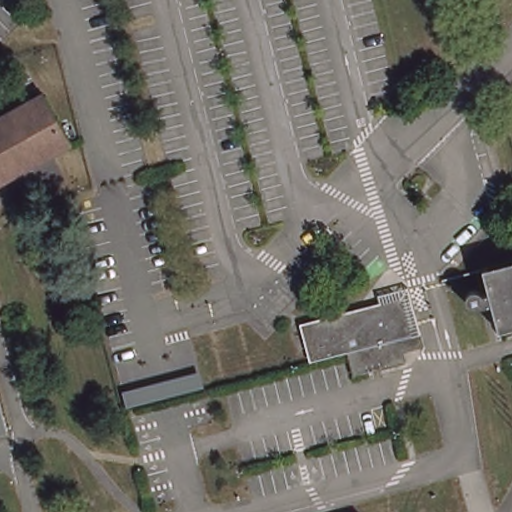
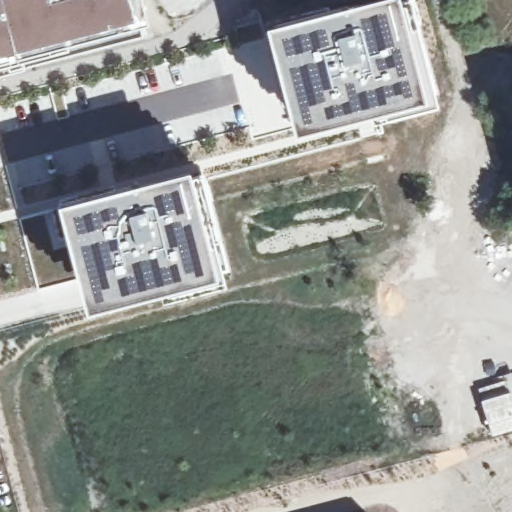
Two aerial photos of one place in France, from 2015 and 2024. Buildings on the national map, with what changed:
new [(145,0),(150,18),(20,52),(21,57),(0,63),(0,0),(145,0)]
new [(409,0),(428,55),(440,100),(391,111),(373,112),(298,130),(270,21),(350,0),(409,0)]
demolished [(5,177),(0,180),(0,121),(46,95),(71,140),(5,177)]
new [(222,272),(90,306),(72,244),(53,249),(43,213),(19,219),(16,204),(60,195),(57,174),(97,161),(99,170),(111,167),(115,183),(196,163),(207,202),(222,272)]
demolished [(494,302),(481,305),(472,304),(471,304),(468,300),(467,295),(469,291),(473,287),(479,287),(483,290),(491,288),(484,265),(512,258),(512,327),(502,330),(494,302)]
demolished [(380,310),(380,308),(397,304),(403,327),(401,328),(402,332),(404,340),(346,354),(338,321),(380,310)]
demolished [(209,389),(125,413),(120,393),(203,367),(209,389)]
demolished [(9,429),(0,432),(0,396),(9,429)]

